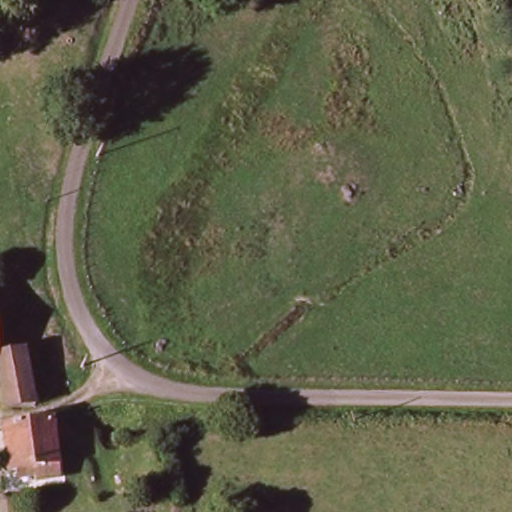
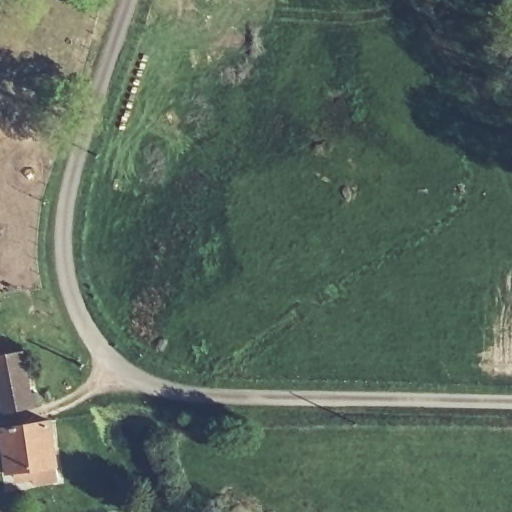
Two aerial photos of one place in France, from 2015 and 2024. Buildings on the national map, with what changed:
unchanged [(3,353),(31,349),(44,403),(7,410),(0,369),(0,332),(3,353)]
unchanged [(69,479),(45,485),(39,470),(16,476),(6,432),(56,421),(69,479)]

